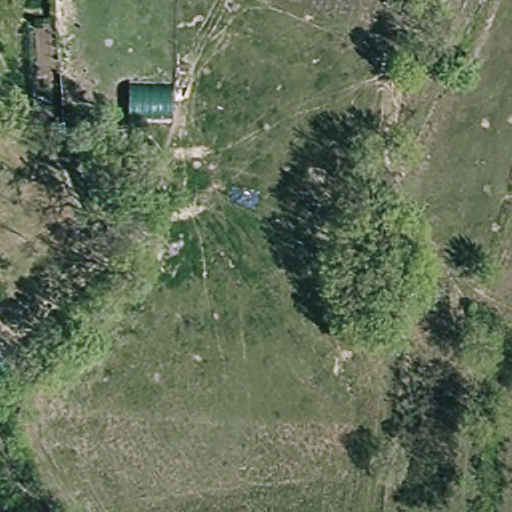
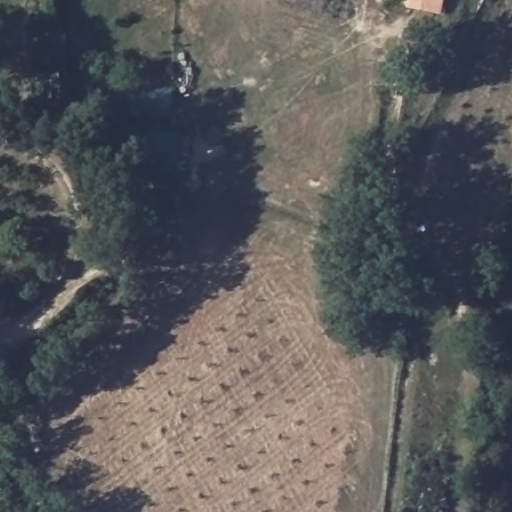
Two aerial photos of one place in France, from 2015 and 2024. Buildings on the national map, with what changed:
new [(408,0),(445,0),(442,15),(406,8),(408,0)]
unchanged [(171,115),(129,116),(130,86),(172,86),(171,115)]

